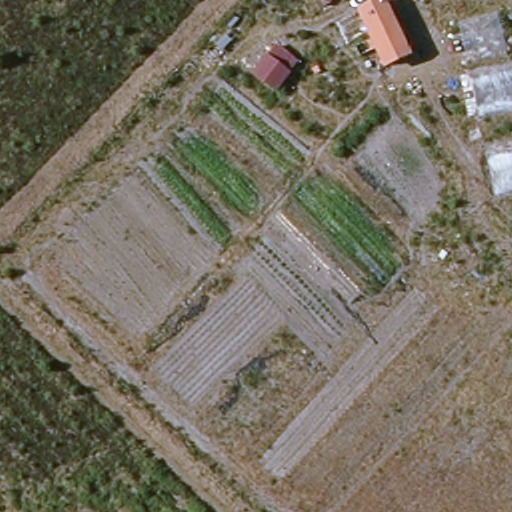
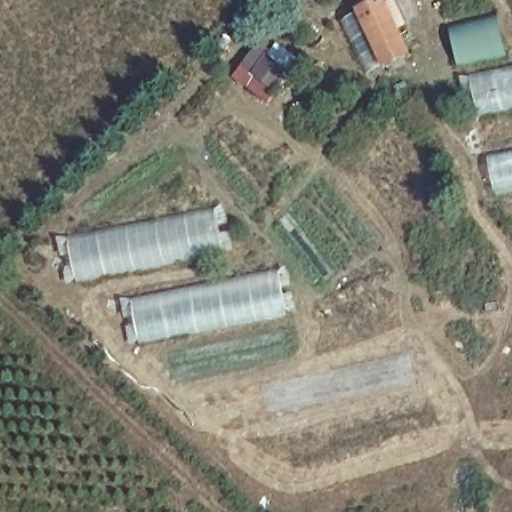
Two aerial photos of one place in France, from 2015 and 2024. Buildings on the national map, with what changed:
unchanged [(376,46),(359,9),(381,0),(383,0),(399,36),(407,54),(384,64),(376,46)]
unchanged [(499,14),(506,52),(464,61),(458,24),(499,14)]
new [(273,52),(276,47),(297,62),(267,103),(233,81),(258,43),(273,52)]
unchanged [(478,116),(471,75),(512,67),(512,109),(478,116)]
unchanged [(495,194),(487,159),(512,154),(512,190),(495,194)]
new [(214,210),(222,251),(77,281),(68,238),(214,210)]
new [(278,272),(285,316),(140,342),(133,302),(278,272)]

